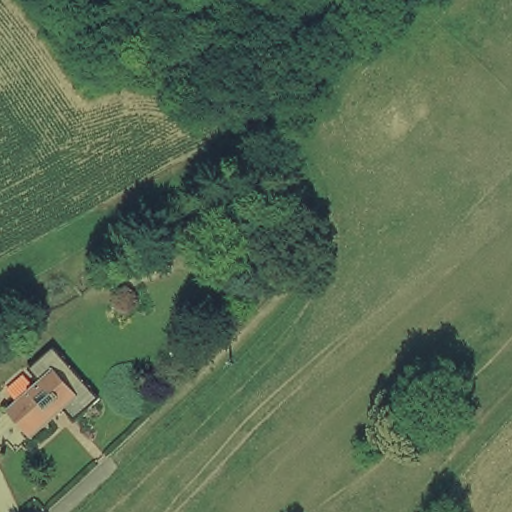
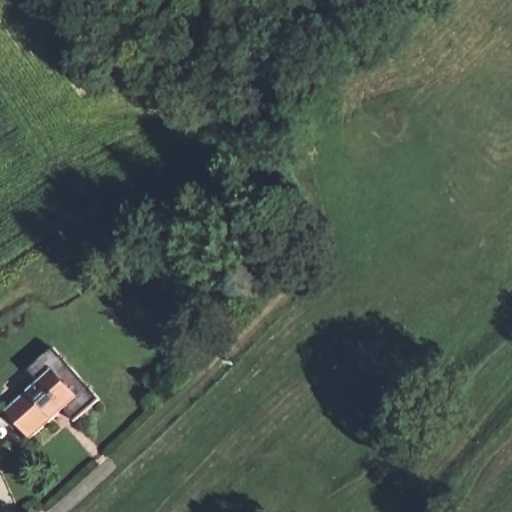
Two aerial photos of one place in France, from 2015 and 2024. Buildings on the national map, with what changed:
unchanged [(43,377),(32,365),(58,342),(103,394),(78,417),(67,405),(33,435),(9,408),(43,377)]

